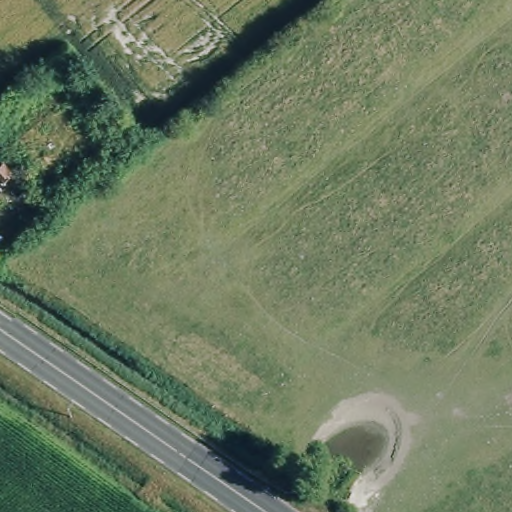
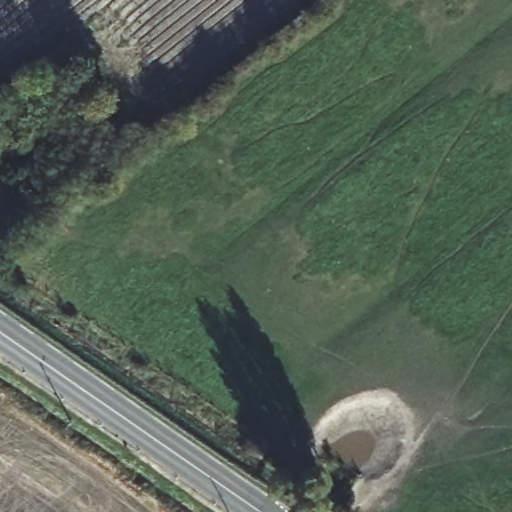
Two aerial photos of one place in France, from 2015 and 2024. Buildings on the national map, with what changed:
unchanged [(20,200),(0,180),(0,162),(0,161),(30,190),(20,200)]

